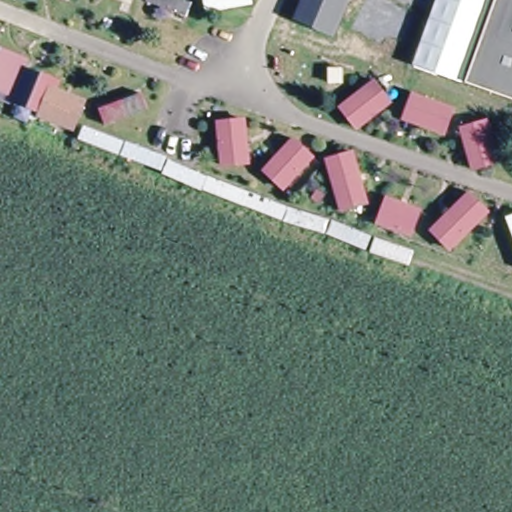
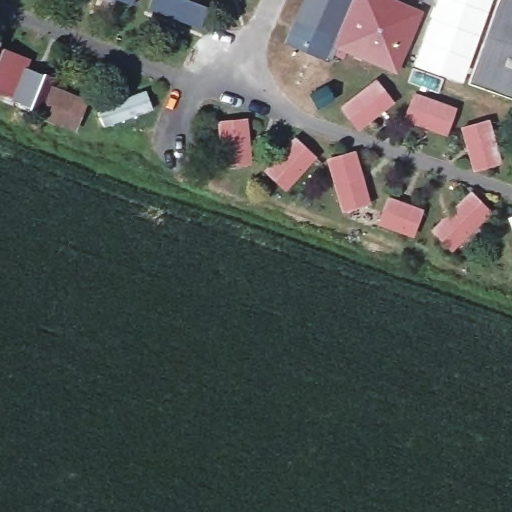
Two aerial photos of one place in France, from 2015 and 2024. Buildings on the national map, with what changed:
unchanged [(293,20),(302,0),(350,0),(334,38),(293,20)]
new [(333,49),(354,0),(393,0),(422,12),(396,75),(333,49)]
unchanged [(413,65),(437,0),(490,0),(461,82),(413,65)]
unchanged [(497,0),(512,0),(512,95),(468,79),(497,0)]
unchanged [(31,58),(28,68),(57,78),(53,89),(42,114),(14,101),(12,106),(0,101),(0,47),(31,58)]
unchanged [(379,81),(395,105),(360,131),(341,108),(379,81)]
unchanged [(42,114),(53,89),(88,104),(75,135),(40,119),(42,114)]
new [(102,126),(95,108),(144,91),(151,109),(102,126)]
unchanged [(416,92),(456,108),(445,137),(405,120),(416,92)]
unchanged [(247,119),(252,165),(226,168),(219,121),(247,119)]
unchanged [(488,121),(503,162),(478,170),(460,131),(488,121)]
unchanged [(299,140),(318,160),(287,190),(267,170),(299,140)]
unchanged [(356,155),(370,207),(344,214),(328,159),(356,155)]
unchanged [(474,194),(493,213),(451,251),(431,230),(474,194)]
unchanged [(423,213),(414,238),(377,222),(386,197),(423,213)]

